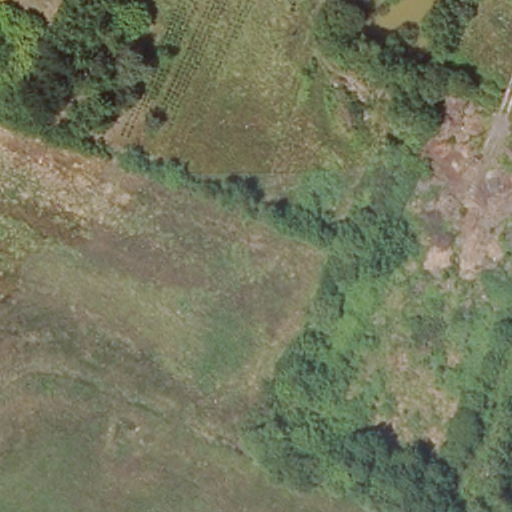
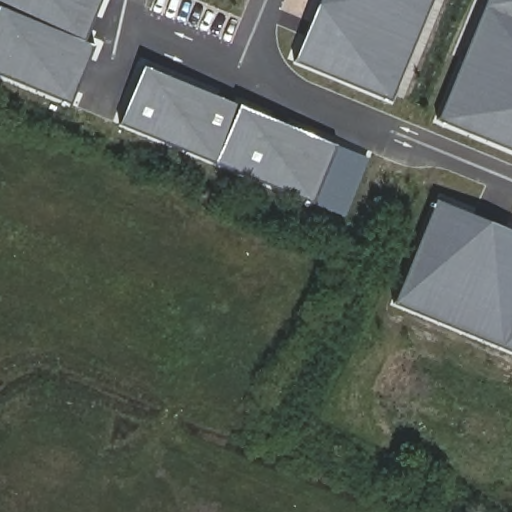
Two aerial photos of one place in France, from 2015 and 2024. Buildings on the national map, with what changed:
new [(84,42),(94,46),(71,104),(0,75),(0,0),(101,0),(84,42)]
new [(390,100),(295,62),(320,0),(430,0),(390,100)]
new [(487,0),(512,0),(512,151),(438,120),(487,0)]
new [(143,66),(240,105),(337,146),(368,159),(344,215),(314,203),(215,163),(119,124),(143,66)]
new [(512,230),(512,351),(393,302),(436,199),(512,230)]
demolished [(267,322),(261,338),(232,327),(239,311),(267,322)]

